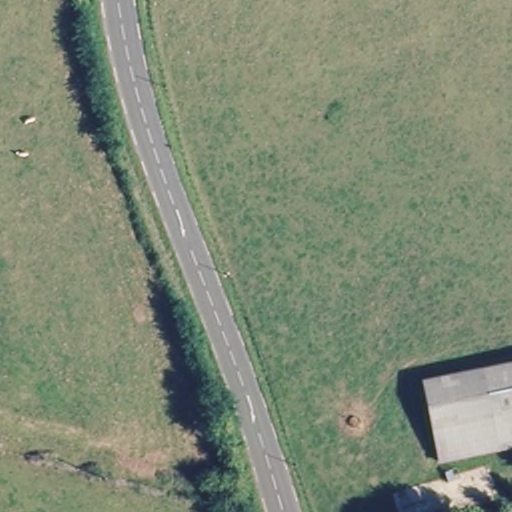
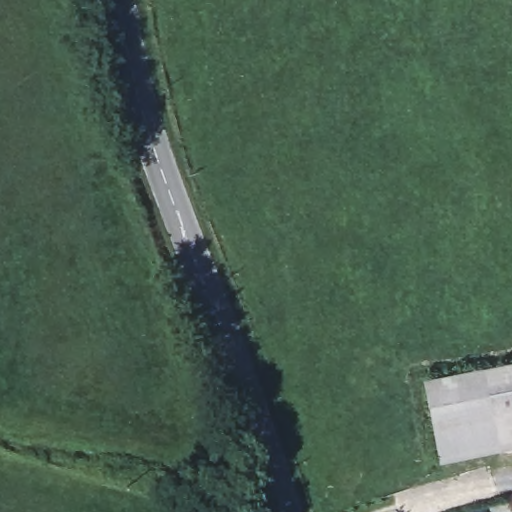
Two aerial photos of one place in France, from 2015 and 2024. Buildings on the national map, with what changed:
unchanged [(445,469),(422,393),(512,370),(512,450),(445,469)]

